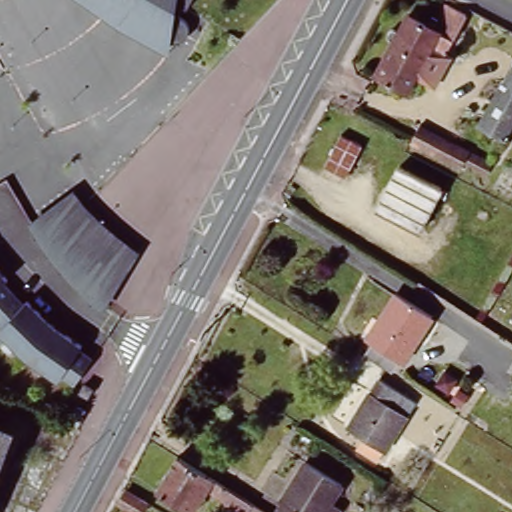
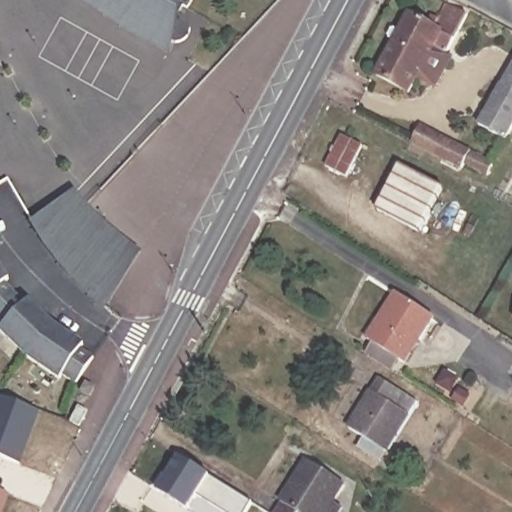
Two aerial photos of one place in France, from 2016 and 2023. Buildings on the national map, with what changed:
unchanged [(188,10),(198,22),(198,40),(187,47),(174,50),(123,27),(87,0),(194,0),(188,10)]
unchanged [(449,46),(442,59),(429,51),(410,86),(380,69),(412,10),(417,13),(422,4),(440,14),(448,0),(468,12),(449,46)]
unchanged [(477,131),(505,82),(510,71),(512,69),(512,126),(501,145),(477,131)]
unchanged [(352,170),(332,159),(348,133),(367,145),(352,170)]
unchanged [(451,164),(453,160),(428,145),(435,135),(487,166),(479,180),(451,164)]
unchanged [(420,230),(375,207),(387,184),(377,175),(388,157),(397,167),(442,189),(420,230)]
unchanged [(77,191),(105,222),(149,250),(110,311),(74,280),(33,220),(77,191)]
unchanged [(102,351),(79,390),(52,372),(0,327),(0,258),(20,290),(102,351)]
unchanged [(365,340),(395,295),(431,318),(400,363),(365,340)]
unchanged [(392,401),(407,412),(373,463),(351,448),(360,437),(339,425),(372,376),(398,392),(392,401)]
new [(20,465),(0,457),(0,397),(39,412),(20,465)]
demolished [(0,488),(0,425),(21,433),(0,488)]
unchanged [(191,506),(159,485),(177,455),(269,512),(244,512),(204,486),(191,506)]
unchanged [(340,478),(320,512),(275,512),(306,460),(340,478)]
unchanged [(157,501),(150,512),(140,512),(120,500),(130,483),(157,501)]
new [(1,512),(0,512),(0,491),(8,494),(1,512)]

